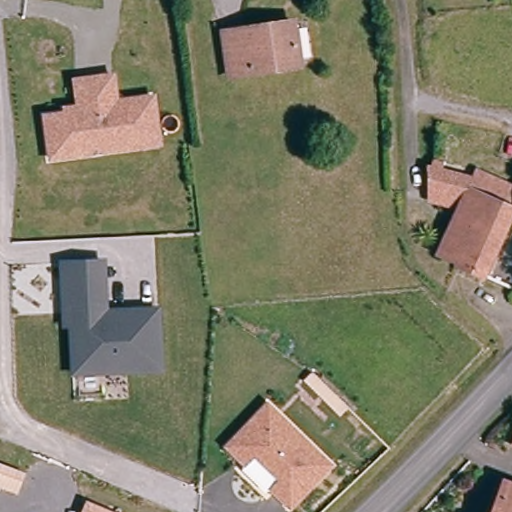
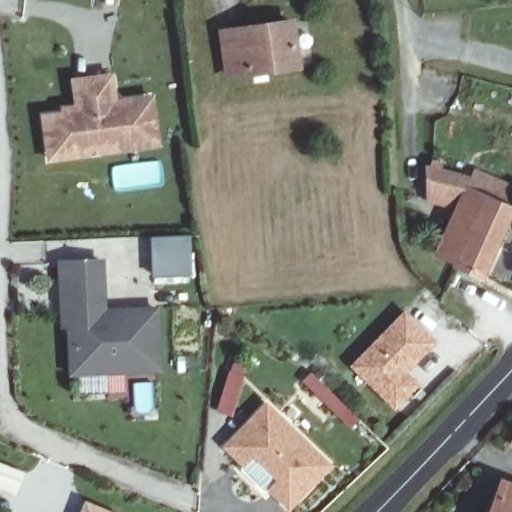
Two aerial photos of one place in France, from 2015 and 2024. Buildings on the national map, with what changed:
unchanged [(222,22),(240,19),(288,12),(294,57),(246,64),(228,67),(222,22)]
unchanged [(49,148),(45,110),(66,108),(65,104),(80,102),(77,76),(95,74),(115,72),(118,99),(145,96),(155,96),(159,144),(124,147),(69,152),(50,154),(49,148)]
unchanged [(455,263),(457,257),(437,251),(456,201),(428,191),(426,167),(433,169),(437,157),(473,171),(470,184),(485,190),(491,172),(512,180),(512,208),(508,207),(485,274),(455,263)]
new [(191,234),(194,278),(152,282),(149,235),(191,234)]
unchanged [(79,371),(75,322),(70,322),(65,260),(106,257),(110,307),(119,307),(160,305),(164,361),(164,366),(79,371)]
new [(348,367),(404,310),(438,342),(409,372),(420,385),(395,411),(348,367)]
unchanged [(512,401),(512,437),(500,432),(512,401)]
unchanged [(265,402),(273,411),(327,461),(305,485),(285,467),(275,476),(274,475),(256,458),(251,453),(249,457),(245,461),(240,456),(226,443),(251,417),(265,402)]
unchanged [(245,461),(249,457),(251,453),(256,458),(274,475),(275,476),(285,467),(305,485),(289,502),(277,491),(269,483),(265,487),(240,465),(245,461)]
unchanged [(0,483),(0,461),(22,470),(16,484),(15,488),(0,483)]
unchanged [(512,486),(512,512),(491,512),(503,482),(512,486)]
unchanged [(108,512),(77,512),(81,501),(108,512)]

